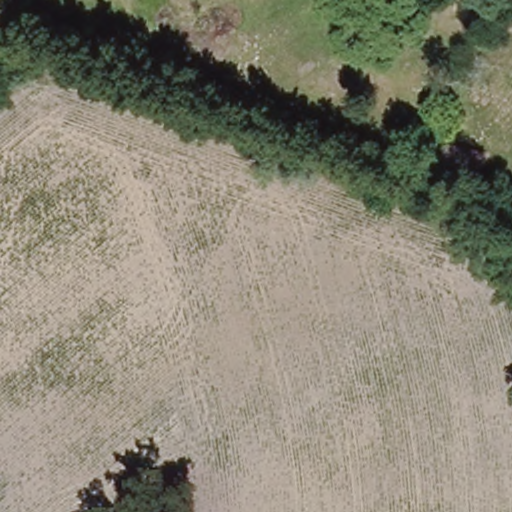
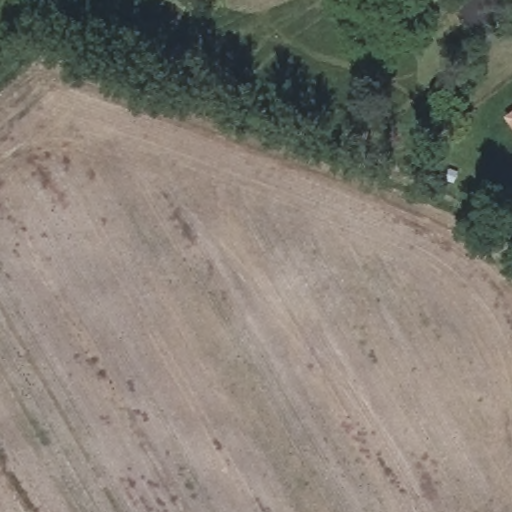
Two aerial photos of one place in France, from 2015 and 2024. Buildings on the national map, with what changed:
new [(512,112),(512,127),(505,117),(512,112)]

